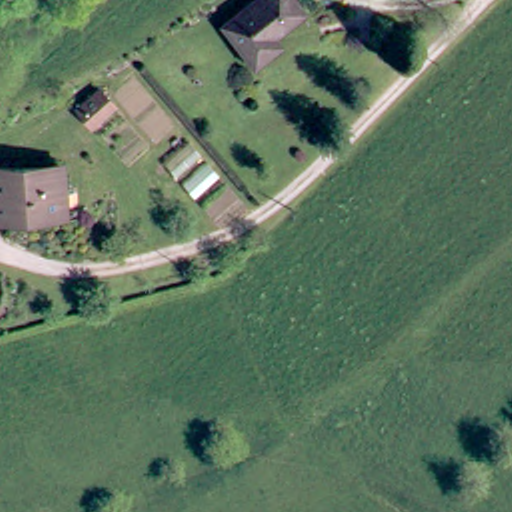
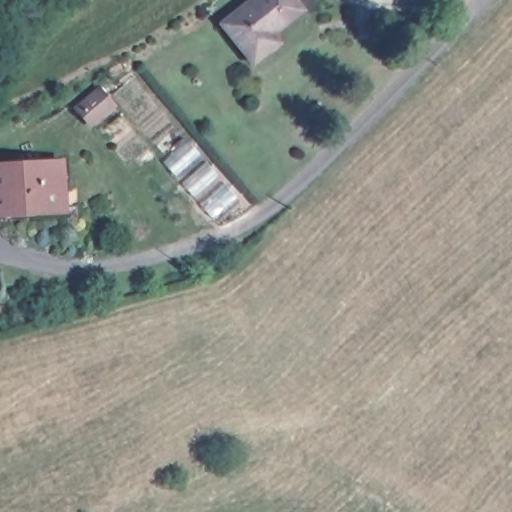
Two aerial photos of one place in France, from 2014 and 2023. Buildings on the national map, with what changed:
unchanged [(265,0),(300,0),(309,12),(254,54),(233,26),(265,0)]
unchanged [(117,105),(95,119),(85,104),(106,90),(117,105)]
unchanged [(70,206),(41,207),(41,215),(3,217),(2,170),(66,168),(70,206)]

